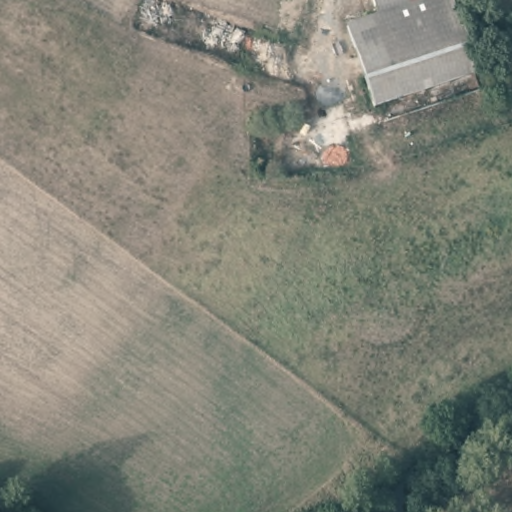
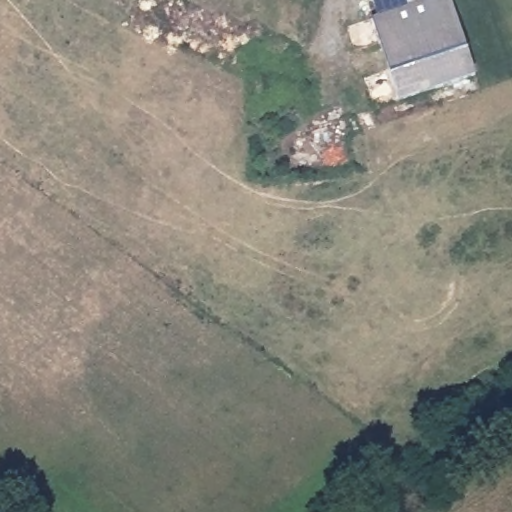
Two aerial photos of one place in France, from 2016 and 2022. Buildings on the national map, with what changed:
unchanged [(370,19),(382,13),(418,0),(454,0),(478,73),(402,100),(370,19)]
unchanged [(378,0),(418,0),(382,13),(378,0)]

